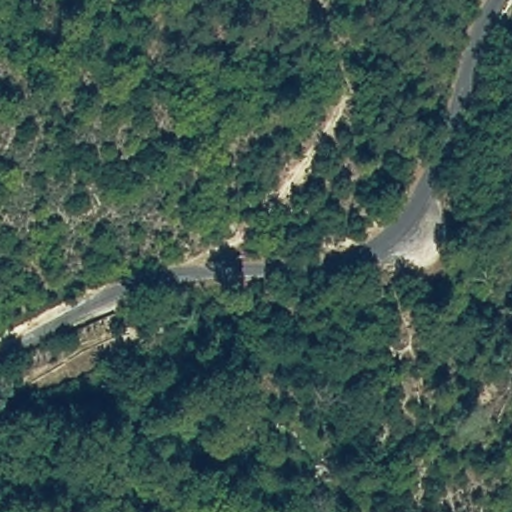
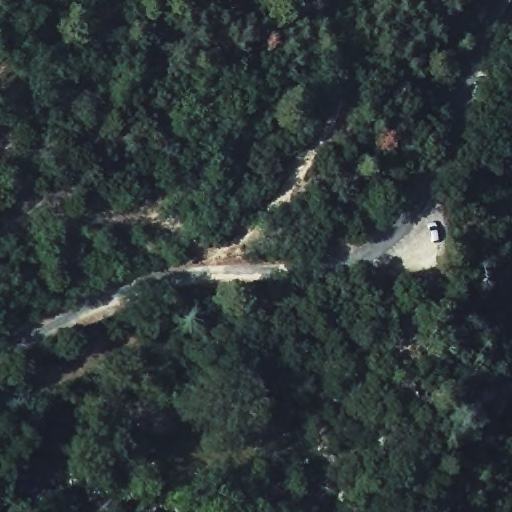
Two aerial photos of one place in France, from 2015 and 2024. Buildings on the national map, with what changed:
unchanged [(510,187),(512,178),(512,188),(510,187)]

